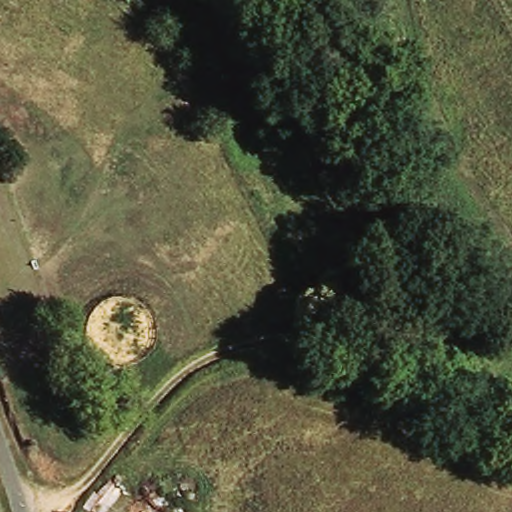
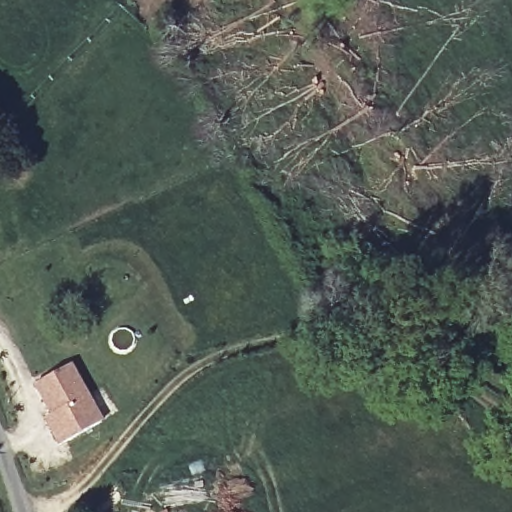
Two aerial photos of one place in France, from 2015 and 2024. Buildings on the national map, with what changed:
new [(72,363),(104,420),(58,446),(42,417),(48,413),(32,385),(72,363)]

